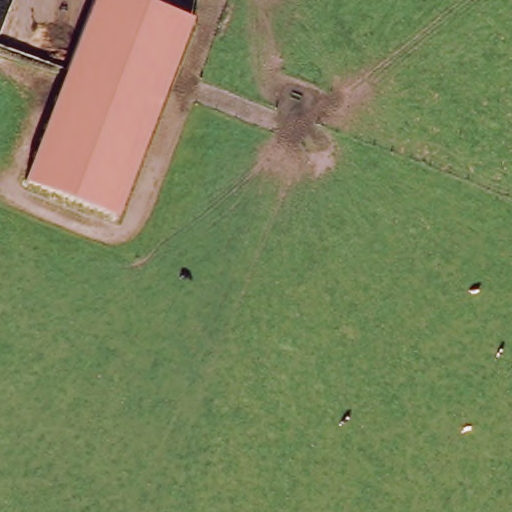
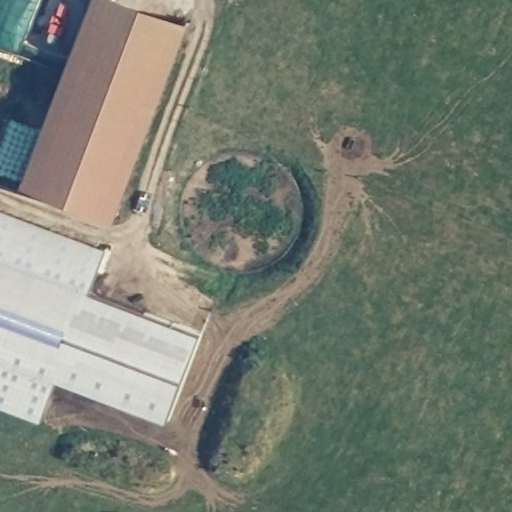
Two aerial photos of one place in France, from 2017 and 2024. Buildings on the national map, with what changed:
unchanged [(193,21),(117,220),(24,184),(95,0),(136,0),(193,21)]
new [(93,288),(204,331),(170,418),(60,376),(60,377),(43,420),(0,404),(0,203),(110,245),(93,288)]

